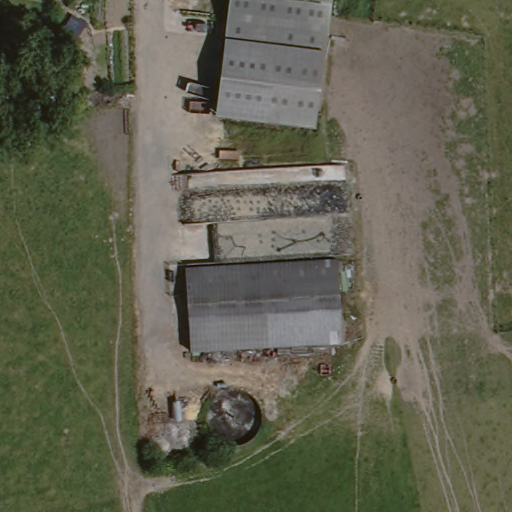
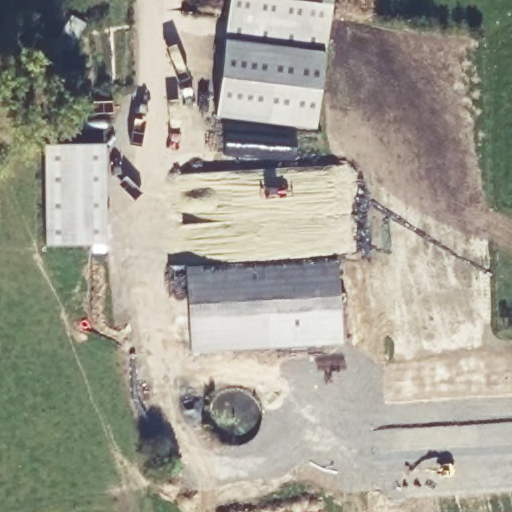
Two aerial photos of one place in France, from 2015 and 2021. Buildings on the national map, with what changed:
unchanged [(335,0),(331,47),(234,34),(237,0),(335,0)]
unchanged [(83,12),(98,20),(85,45),(71,38),(83,12)]
unchanged [(331,47),(324,116),(227,106),(234,34),(331,47)]
new [(106,244),(44,245),(44,145),(106,145),(106,244)]
unchanged [(187,268),(235,264),(339,258),(341,306),(190,315),(187,268)]
unchanged [(192,350),(190,315),(341,306),(339,311),(340,343),(192,350)]

